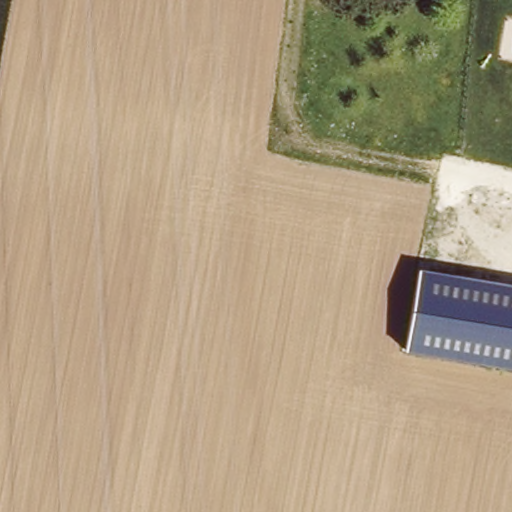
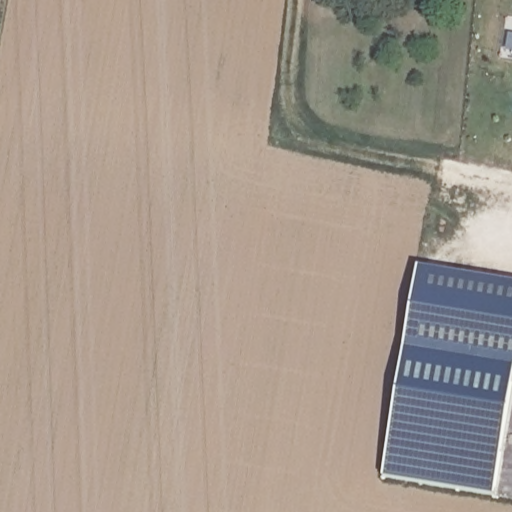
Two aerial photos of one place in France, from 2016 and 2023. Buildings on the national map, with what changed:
unchanged [(405,351),(419,271),(512,286),(512,368),(405,351)]
new [(493,496),(384,478),(405,351),(512,369),(512,386),(493,496)]

